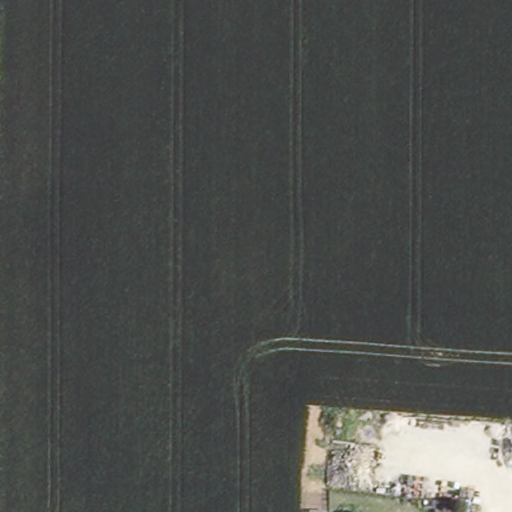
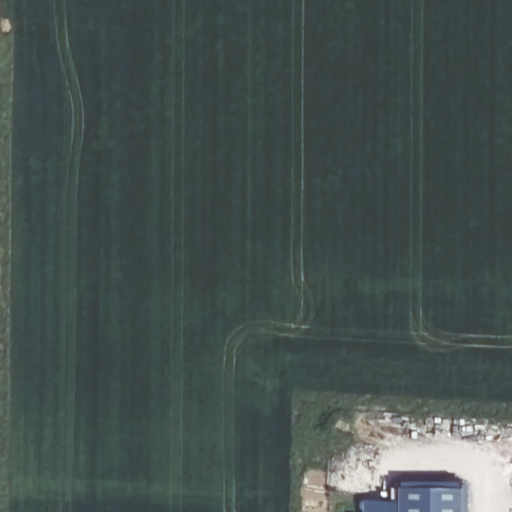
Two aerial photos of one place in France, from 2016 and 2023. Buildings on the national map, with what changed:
new [(399,503),(399,488),(401,488),(400,482),(459,483),(459,486),(467,486),(467,512),(399,512),(399,503)]
new [(364,500),(399,503),(399,512),(364,512),(364,500)]

